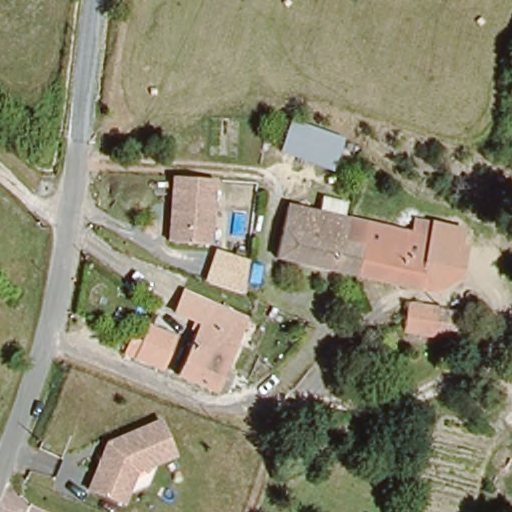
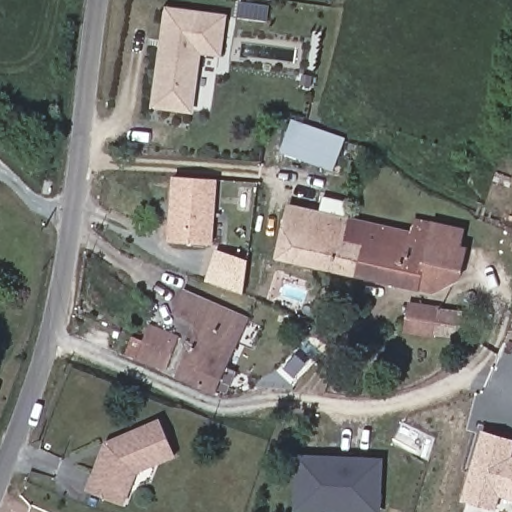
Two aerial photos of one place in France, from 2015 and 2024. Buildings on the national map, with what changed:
new [(202,55),(194,114),(151,108),(165,6),(228,14),(222,57),(202,55)]
unchanged [(334,168),(280,151),(290,119),(332,132),(342,140),(334,168)]
unchanged [(192,176),(218,177),(216,243),(174,241),(177,175),(192,176)]
unchanged [(342,245),(365,250),(363,255),(359,273),(277,254),(287,202),(316,208),(320,191),(348,197),(344,214),(349,215),(342,245)]
unchanged [(462,278),(437,290),(421,287),(359,273),(363,255),(365,250),(342,245),(349,215),(413,231),(415,217),(463,226),(458,251),(464,254),(462,278)]
unchanged [(215,250),(249,261),(245,293),(206,280),(215,250)]
unchanged [(182,310),(190,289),(247,314),(217,384),(178,367),(199,318),(182,310)]
unchanged [(413,332),(417,305),(452,308),(451,319),(463,321),(461,337),(413,332)]
unchanged [(164,370),(130,356),(137,339),(147,344),(153,329),(177,337),(164,370)]
demolished [(512,381),(509,379),(512,375),(512,381)]
unchanged [(110,443),(162,421),(177,455),(139,471),(126,502),(91,489),(110,443)]
new [(497,511),(461,501),(482,430),(512,439),(512,500),(502,496),(497,511)]
new [(381,512),(294,512),(295,454),(385,457),(381,512)]

